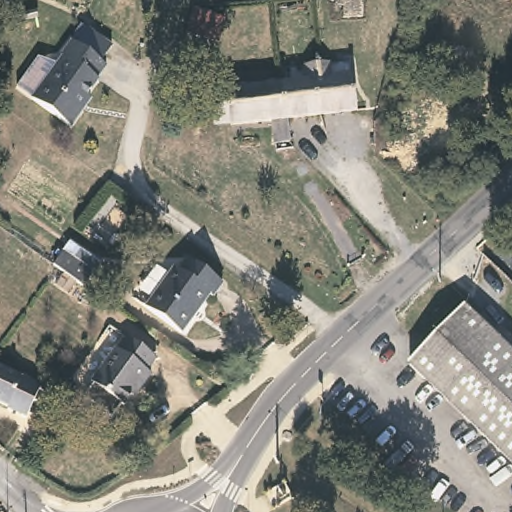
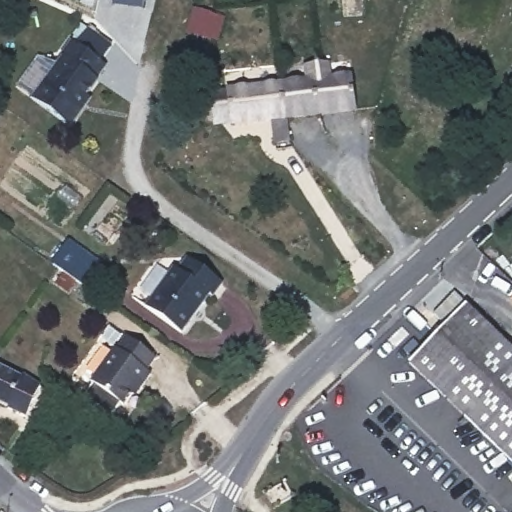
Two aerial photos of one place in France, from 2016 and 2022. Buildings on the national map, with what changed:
unchanged [(80,106),(67,125),(31,98),(61,56),(58,53),(68,39),(72,41),(83,26),(108,44),(96,59),(102,63),(92,78),(95,80),(83,94),(86,97),(80,106)]
unchanged [(309,115),(304,74),(330,71),(329,56),(340,54),(342,76),(345,111),(341,112),(309,115)]
unchanged [(312,138),(295,139),(293,115),(252,116),(252,111),(236,111),(234,86),(250,85),(250,79),(304,74),(309,115),(312,138)]
unchanged [(91,266),(82,279),(58,261),(68,248),(91,266)]
unchanged [(222,288),(213,301),(209,299),(180,337),(145,310),(176,271),(179,274),(186,262),(222,288)]
unchanged [(512,346),(512,463),(410,358),(470,303),(512,346)]
unchanged [(155,360),(145,373),(150,376),(140,390),(136,387),(121,407),(89,383),(114,350),(115,351),(124,338),(155,360)]
unchanged [(22,371),(38,383),(24,414),(6,406),(6,405),(0,401),(0,365),(21,374),(22,371)]

